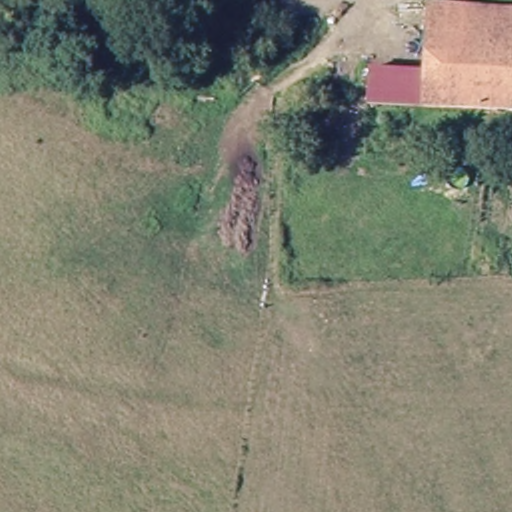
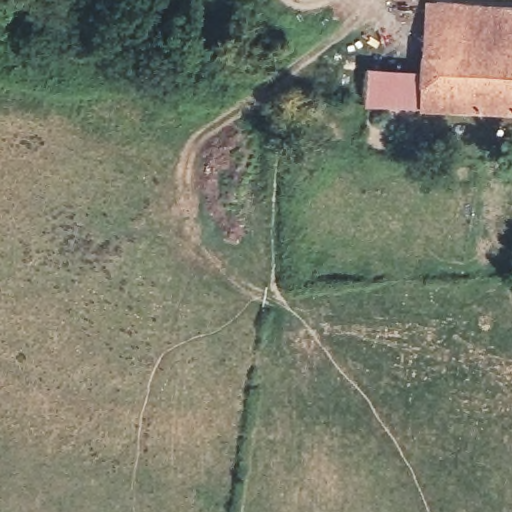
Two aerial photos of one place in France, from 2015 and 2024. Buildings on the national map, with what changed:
unchanged [(505,16),(512,16),(512,119),(430,114),(430,75),(431,14),(478,15),(505,16)]
unchanged [(369,111),(370,74),(430,75),(430,114),(369,111)]

